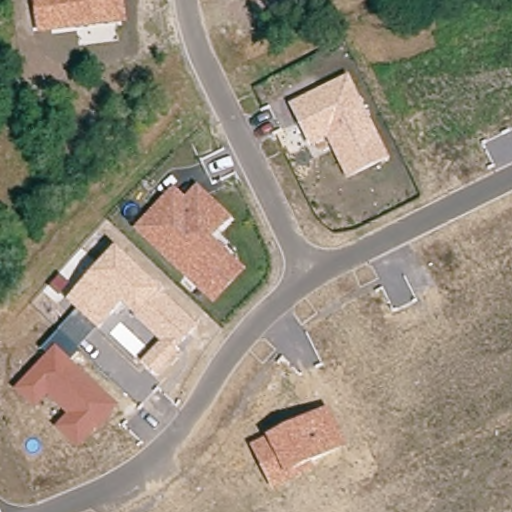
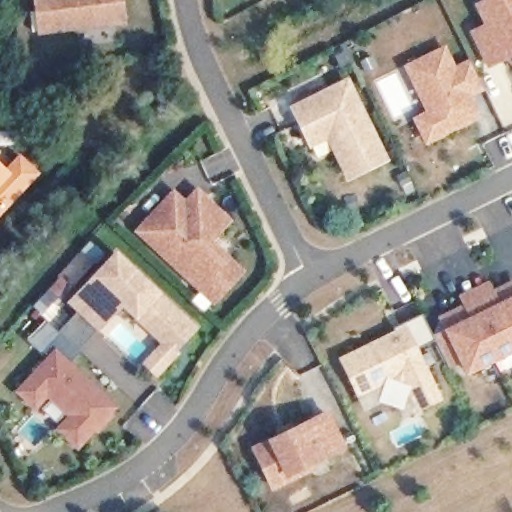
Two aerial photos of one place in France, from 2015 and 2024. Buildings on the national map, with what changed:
unchanged [(127,25),(38,36),(34,0),(124,0),(127,25)]
unchanged [(488,62),(474,33),(489,26),(479,5),(489,0),(512,0),(512,51),(488,62)]
new [(407,67),(444,48),(455,69),(471,61),(484,88),(468,96),(478,117),(441,135),(427,142),(416,120),(429,112),(407,67)]
unchanged [(350,77),(390,162),(346,182),(327,141),(309,149),(290,106),(350,77)]
new [(16,149),(40,172),(0,215),(0,163),(3,165),(16,149)]
unchanged [(186,199),(196,187),(233,220),(213,242),(247,272),(214,306),(134,232),(173,189),(186,199)]
unchanged [(48,356),(43,351),(77,312),(68,302),(88,281),(115,250),(160,291),(199,327),(156,377),(141,364),(161,342),(136,320),(122,307),(99,332),(95,329),(68,360),(119,407),(79,450),(56,429),(68,416),(49,397),(37,410),(15,390),(48,356)]
new [(457,315),(463,309),(472,305),(482,303),(493,297),(492,294),(493,293),(501,292),(506,291),(512,288),(512,349),(506,352),(503,347),(478,359),(481,365),(468,371),(462,358),(448,365),(437,341),(436,338),(447,332),(442,322),(457,315)]
new [(394,327),(403,323),(423,313),(436,338),(437,341),(417,350),(440,398),(419,408),(407,383),(393,378),(359,394),(342,360),(397,333),(394,327)]
unchanged [(272,441),(329,409),(346,446),(287,477),(289,483),(272,491),(251,446),(267,438),(272,441)]

